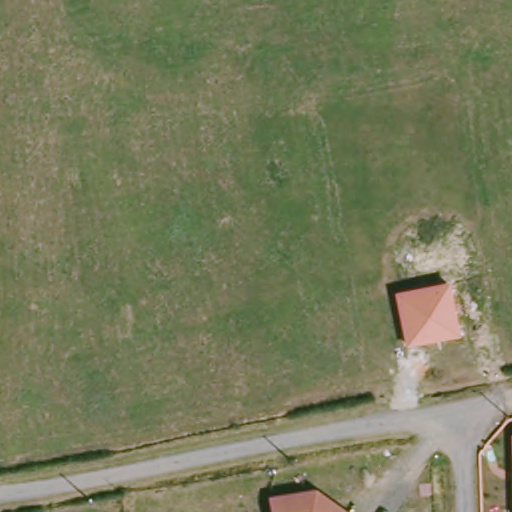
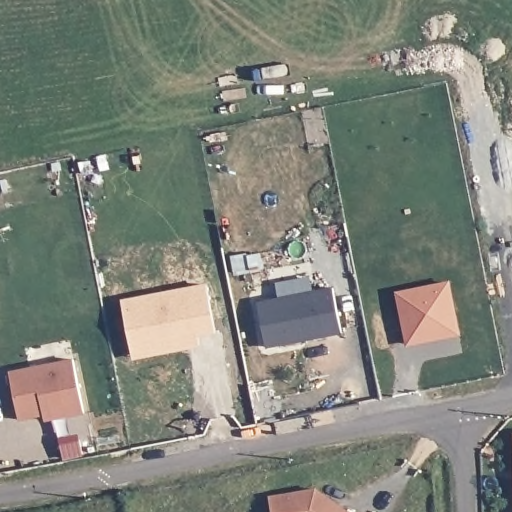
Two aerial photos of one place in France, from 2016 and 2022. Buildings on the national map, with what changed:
unchanged [(394,291),(449,280),(460,335),(405,346),(394,291)]
new [(121,299),(207,283),(215,331),(198,334),(199,344),(133,358),(121,299)]
new [(258,301),(333,287),(342,332),(266,347),(258,301)]
new [(1,373),(65,361),(75,414),(59,417),(58,411),(10,420),(1,373)]
unchanged [(512,431),(512,457),(511,431),(512,431)]
unchanged [(314,488),(325,496),(347,512),(270,512),(268,496),(314,488)]

